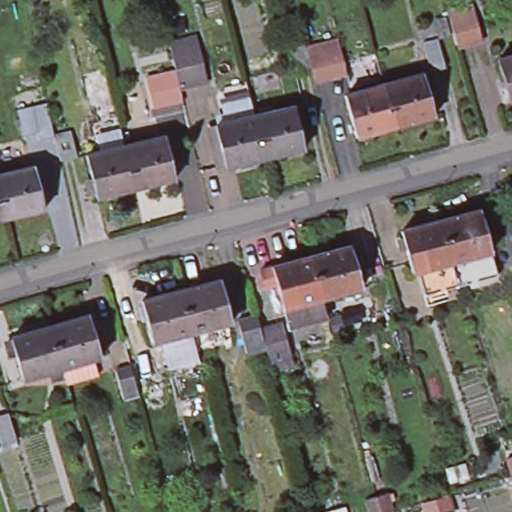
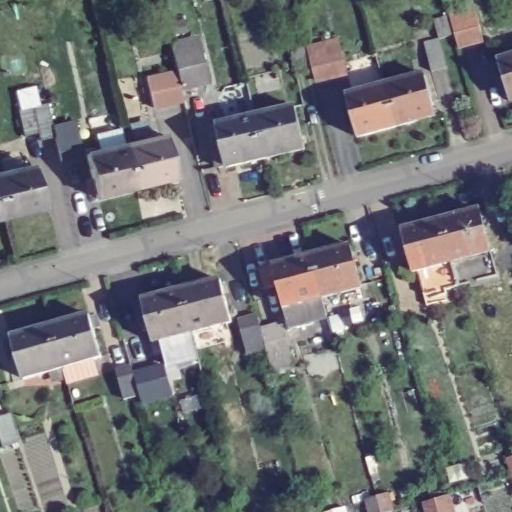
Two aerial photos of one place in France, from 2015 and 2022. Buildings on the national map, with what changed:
unchanged [(457,45),(447,10),(473,4),(482,39),(457,45)]
unchanged [(171,45),(195,39),(204,80),(196,83),(180,86),(178,83),(171,45)]
unchanged [(414,43),(428,39),(436,68),(421,72),(414,43)]
unchanged [(346,72),(315,80),(312,72),(296,75),(289,46),(305,43),(306,48),(338,40),(346,72)]
unchanged [(512,55),(512,100),(505,102),(493,60),(512,55)]
unchanged [(413,74),(425,115),(386,126),(375,84),(413,74)]
unchanged [(335,95),(375,84),(386,126),(347,138),(335,95)]
unchanged [(295,101),(305,144),(265,153),(255,111),(295,101)]
unchanged [(208,122),(215,120),(255,111),(265,153),(225,162),(225,161),(218,163),(208,122)]
unchanged [(70,132),(76,157),(60,161),(55,135),(70,132)]
unchanged [(165,136),(175,179),(136,188),(126,145),(165,136)]
unchanged [(86,155),(126,145),(136,188),(96,198),(86,155)]
unchanged [(35,167),(45,209),(5,219),(0,198),(0,175),(35,167)]
unchanged [(5,219),(0,220),(0,198),(5,219)]
unchanged [(412,263),(401,221),(440,210),(480,199),(491,242),(451,253),(457,277),(424,286),(417,262),(412,263)]
unchanged [(282,316),(278,299),(266,257),(306,246),(345,235),(356,278),(317,289),(322,305),(282,316)]
unchanged [(151,337),(150,332),(148,333),(136,290),(176,280),(215,270),(226,312),(222,314),(226,330),(220,332),(192,339),(187,323),(165,328),(166,333),(151,337)]
unchanged [(285,349),(285,348),(265,353),(260,338),(241,343),(232,309),(251,304),(256,319),(277,314),(286,349),(285,349)]
unchanged [(62,374),(57,358),(18,369),(6,328),(45,317),(84,305),(85,308),(91,306),(95,317),(88,319),(96,347),(89,349),(93,365),(62,374)]
unchanged [(131,366),(139,394),(123,399),(115,371),(131,366)]
unchanged [(1,446),(0,443),(0,415),(7,413),(16,441),(1,446)]
unchanged [(512,476),(506,458),(512,456),(512,476)]
unchanged [(386,493),(392,511),(388,512),(368,512),(365,499),(375,496),(386,493)]

